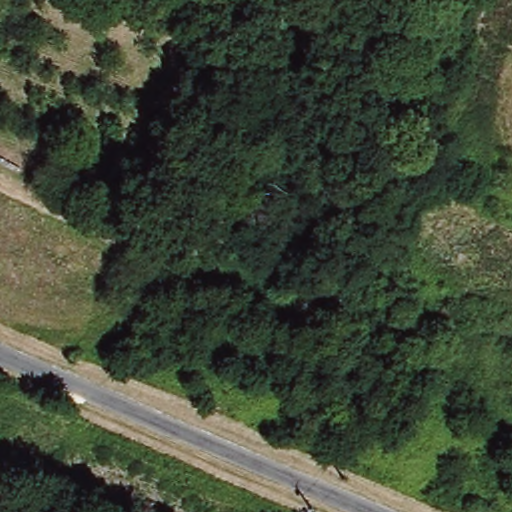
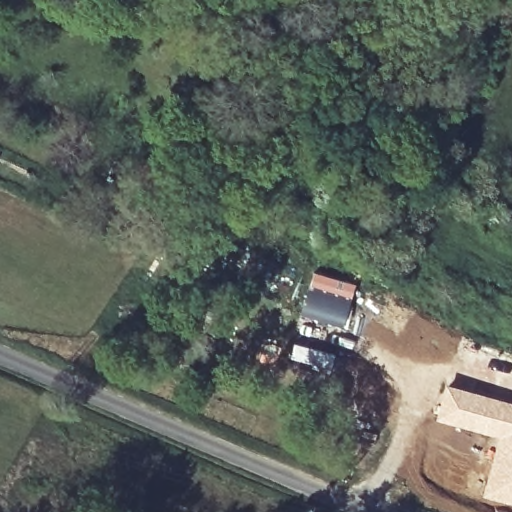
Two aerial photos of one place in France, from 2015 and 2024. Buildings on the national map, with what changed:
new [(344,328),(301,316),(314,273),(356,285),(352,299),(344,328)]
new [(512,402),(512,505),(483,497),(499,438),(436,420),(447,383),(512,402)]

